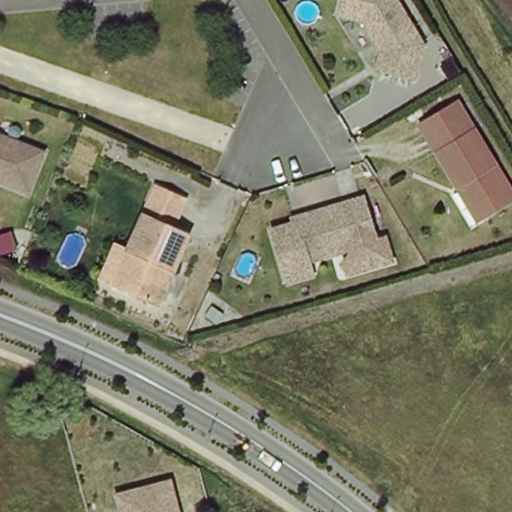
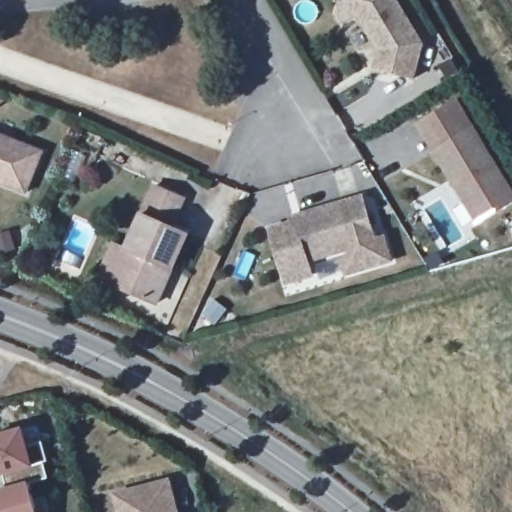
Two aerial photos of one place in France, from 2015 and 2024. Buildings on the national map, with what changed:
unchanged [(430,48),(420,84),(382,74),(387,55),(368,25),(343,19),(348,0),(400,0),(430,48)]
unchanged [(460,192),(437,155),(420,127),(430,120),(458,103),(512,192),(512,207),(486,222),(480,225),(460,192)]
unchanged [(47,155),(30,195),(0,183),(0,136),(15,142),(47,155)]
unchanged [(125,251),(152,187),(182,200),(170,229),(187,235),(157,305),(118,289),(111,285),(125,251)]
unchanged [(290,283),(286,270),(274,230),(306,220),(305,216),(366,197),(379,240),(312,261),(317,275),(290,283)]
new [(5,475),(0,476),(0,433),(22,426),(28,449),(43,445),(48,462),(42,463),(47,478),(29,483),(37,512),(0,512),(0,489),(8,487),(5,475)]
unchanged [(119,512),(114,493),(170,480),(179,512),(119,512)]

